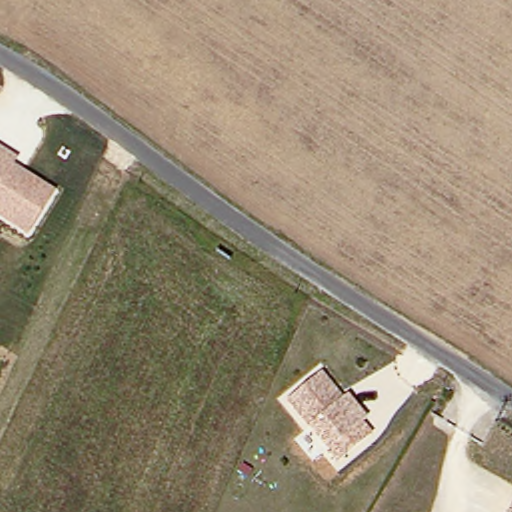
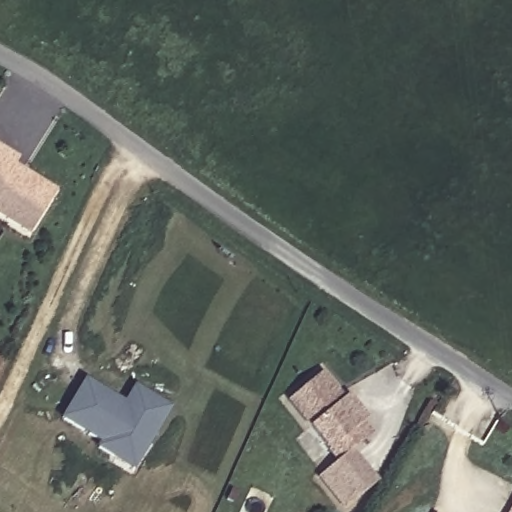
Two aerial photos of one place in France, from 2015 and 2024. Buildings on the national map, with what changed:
unchanged [(0,154),(0,149),(2,151),(0,154)]
unchanged [(23,230),(0,216),(0,158),(49,189),(23,230)]
unchanged [(345,392),(365,415),(361,418),(371,430),(339,457),(287,397),(319,370),(341,396),(345,392)]
new [(111,401),(120,407),(131,389),(165,410),(130,470),(95,449),(98,444),(58,420),(81,383),(111,401)]
new [(343,510),(317,475),(339,457),(353,445),(380,481),(343,510)]
unchanged [(512,497),(512,512),(503,512),(512,497)]

